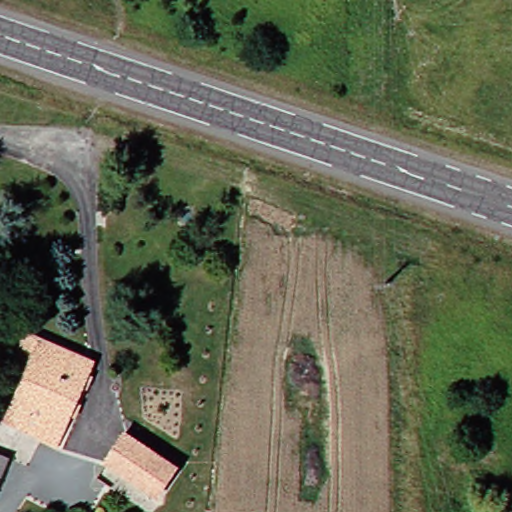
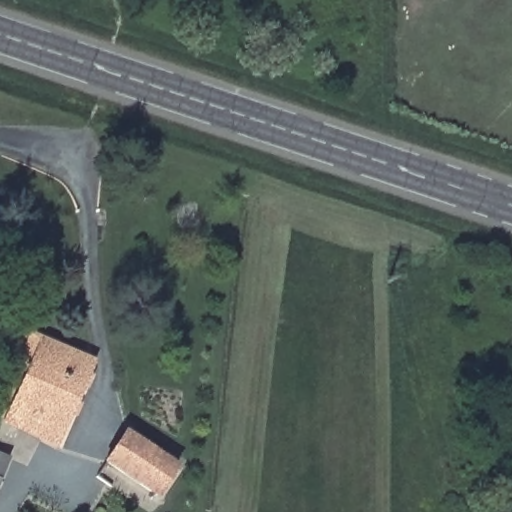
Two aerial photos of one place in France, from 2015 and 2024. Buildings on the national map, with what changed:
unchanged [(10,425),(30,378),(15,372),(30,337),(97,365),(62,447),(10,425)]
unchanged [(111,461),(130,433),(179,466),(161,495),(111,461)]
unchanged [(0,477),(0,453),(9,458),(0,477)]

